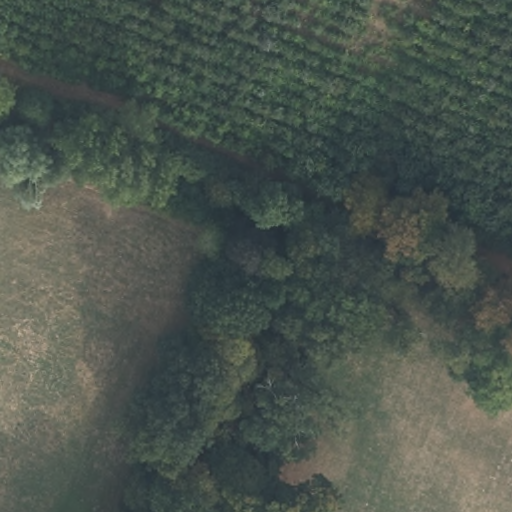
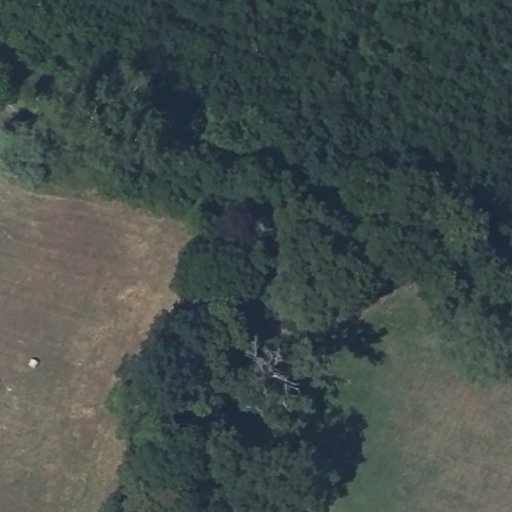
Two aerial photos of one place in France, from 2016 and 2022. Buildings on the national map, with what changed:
[]

